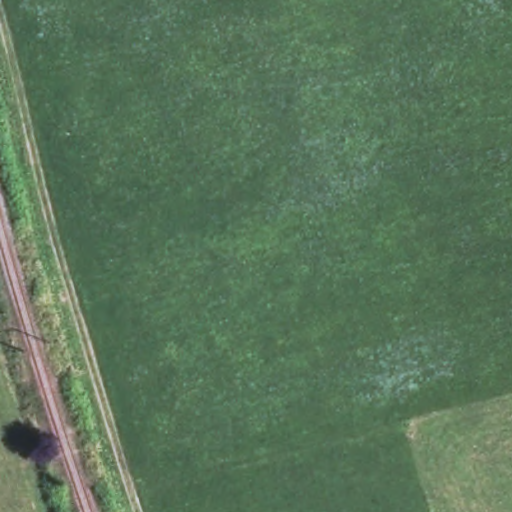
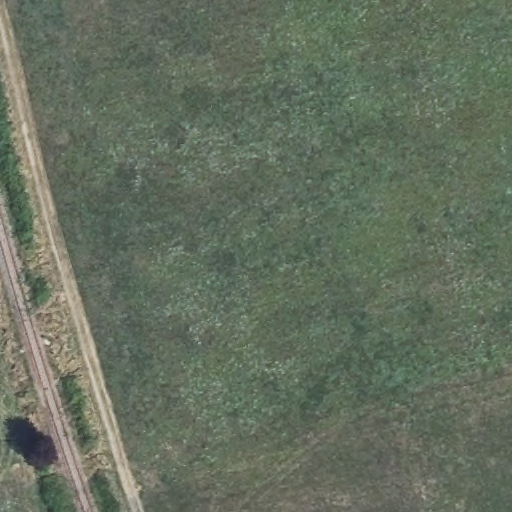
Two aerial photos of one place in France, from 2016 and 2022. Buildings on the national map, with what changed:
[]

